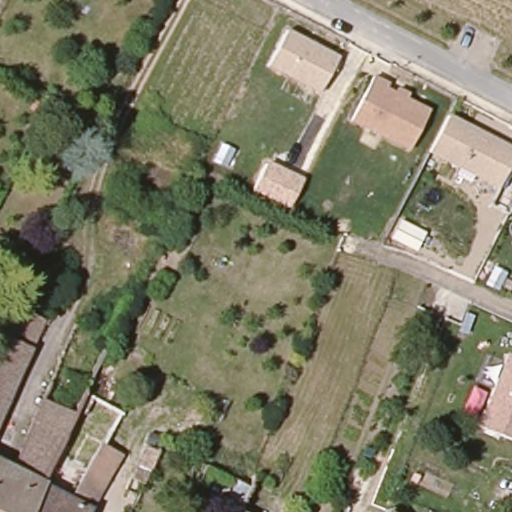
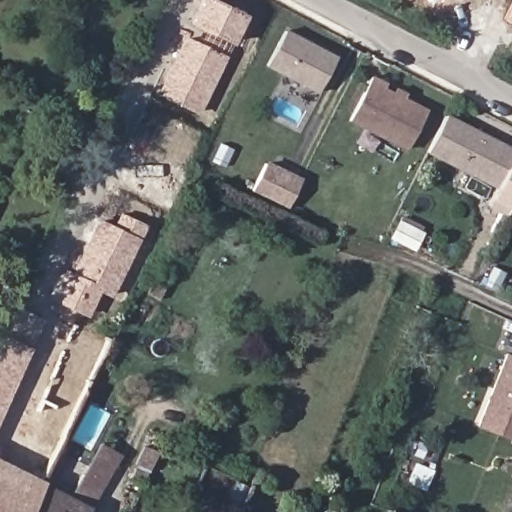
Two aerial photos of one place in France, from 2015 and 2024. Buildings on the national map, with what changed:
new [(199,115),(156,95),(185,36),(197,41),(203,29),(190,22),(202,0),(215,0),(247,15),(233,45),(199,115)]
new [(512,5),(512,24),(504,20),(512,5)]
unchanged [(317,94),(263,66),(283,29),(337,55),(317,94)]
unchanged [(408,152),(346,121),(370,75),(386,82),(383,88),(427,110),(408,152)]
unchanged [(425,154),(444,115),(512,149),(512,162),(497,190),(425,154)]
new [(289,208),(251,189),(266,160),(303,178),(289,208)]
new [(146,225),(140,238),(111,297),(99,291),(87,317),(51,298),(65,270),(71,273),(95,218),(110,225),(119,212),(146,225)]
new [(414,250),(389,237),(398,220),(401,215),(423,226),(421,230),(424,232),(414,250)]
unchanged [(17,303),(43,315),(0,415),(0,341),(17,303)]
unchanged [(504,354),(512,357),(512,441),(477,429),(504,354)]
unchanged [(12,462),(57,359),(92,373),(30,512),(0,512),(0,457),(12,462)]
unchanged [(94,368),(135,390),(104,437),(121,446),(95,492),(85,512),(30,512),(92,373),(94,368)]
unchanged [(141,485),(129,480),(142,448),(154,454),(141,485)]
unchanged [(129,510),(119,506),(126,490),(136,494),(129,510)]
unchanged [(245,512),(231,512),(234,506),(245,512)]

